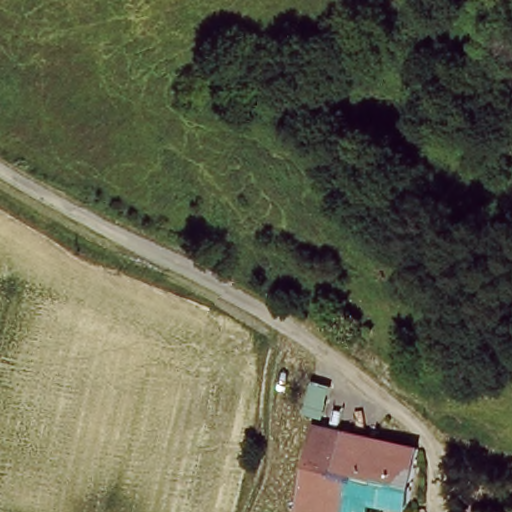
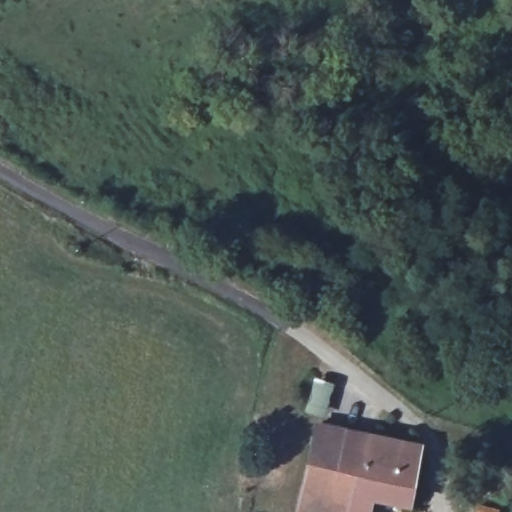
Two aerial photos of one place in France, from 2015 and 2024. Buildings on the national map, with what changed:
unchanged [(430,482),(419,512),(407,512),(372,506),(370,512),(296,512),(315,432),(422,448),(415,478),(430,482)]
unchanged [(478,512),(480,507),(498,512),(478,512)]

